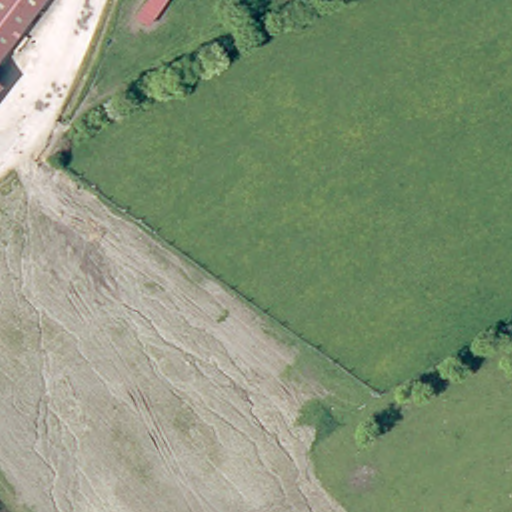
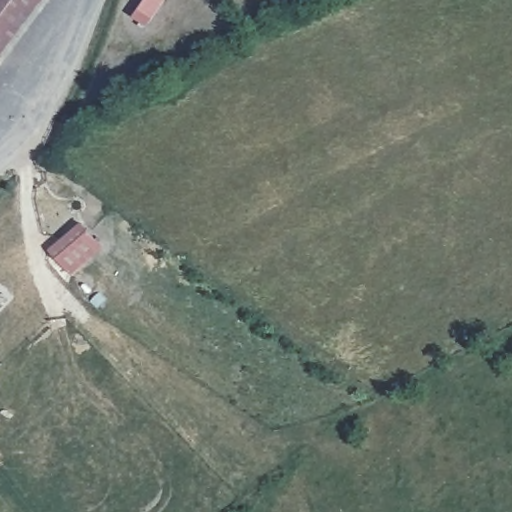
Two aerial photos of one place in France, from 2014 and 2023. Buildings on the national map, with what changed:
unchanged [(0,0),(40,0),(0,53),(0,0)]
new [(101,246),(70,273),(50,249),(80,222),(101,246)]

